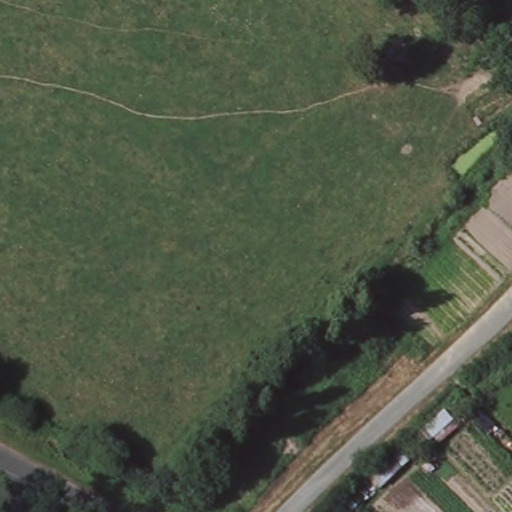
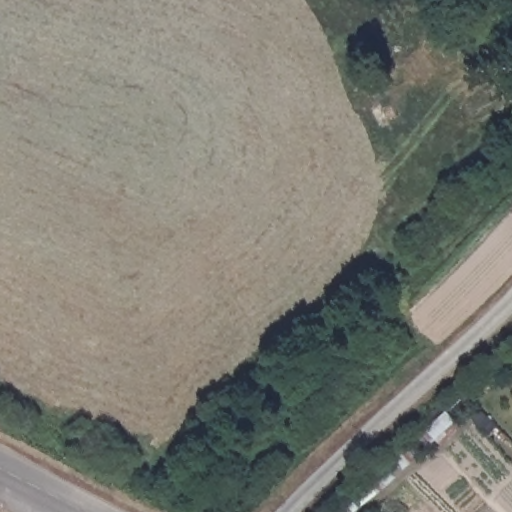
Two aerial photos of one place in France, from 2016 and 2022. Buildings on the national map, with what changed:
unchanged [(420,433),(442,414),(464,433),(438,452),(420,433)]
unchanged [(367,480),(404,448),(417,463),(382,493),(367,480)]

